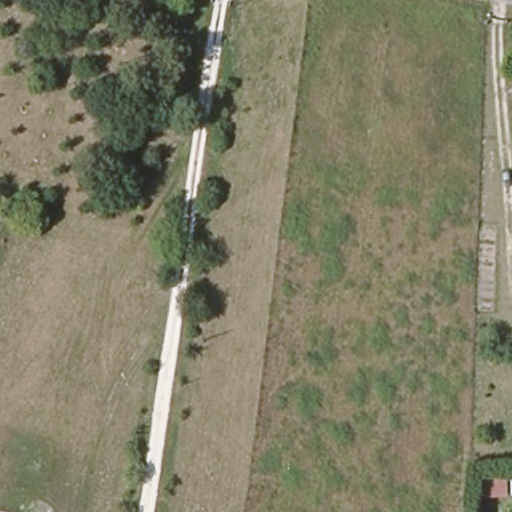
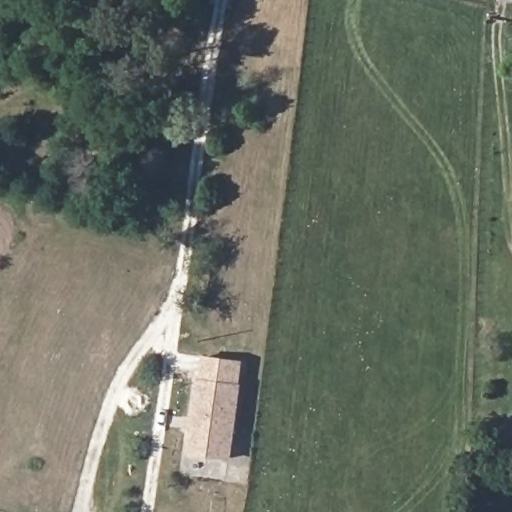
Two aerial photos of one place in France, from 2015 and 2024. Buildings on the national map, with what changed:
new [(188,454),(191,432),(185,431),(187,415),(194,416),(199,378),(243,385),(233,461),(188,454)]

